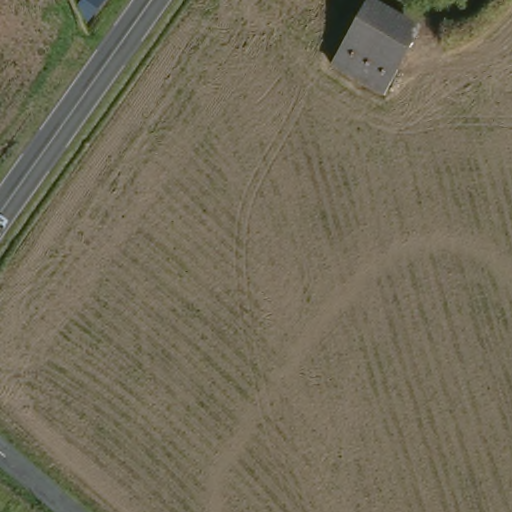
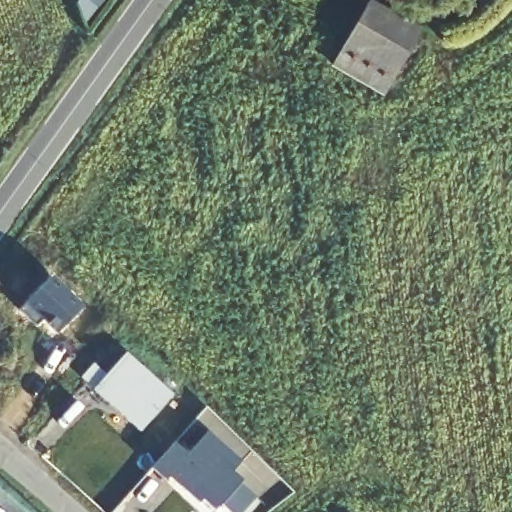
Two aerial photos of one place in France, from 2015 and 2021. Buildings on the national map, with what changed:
unchanged [(424,32),(394,90),(341,60),(372,5),(424,32)]
new [(54,275),(85,307),(59,332),(46,318),(39,325),(21,308),(54,275)]
new [(94,363),(108,374),(131,353),(175,396),(139,431),(93,390),(94,389),(80,378),(94,363)]
new [(199,443),(214,427),(244,456),(231,468),(243,479),(239,483),(254,497),(239,512),(228,512),(218,502),(212,509),(199,496),(194,501),(178,486),(183,481),(172,472),(164,479),(152,468),(186,431),(199,443)]

